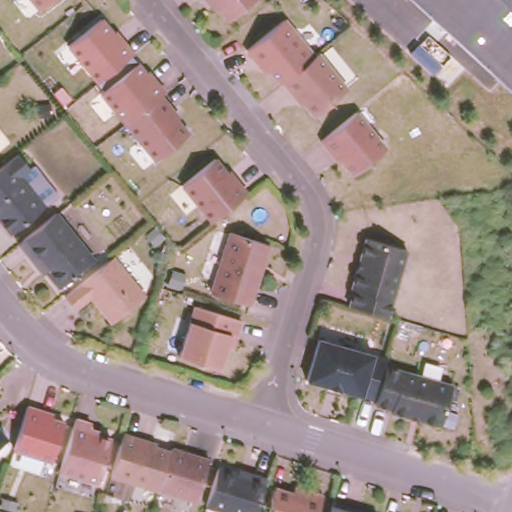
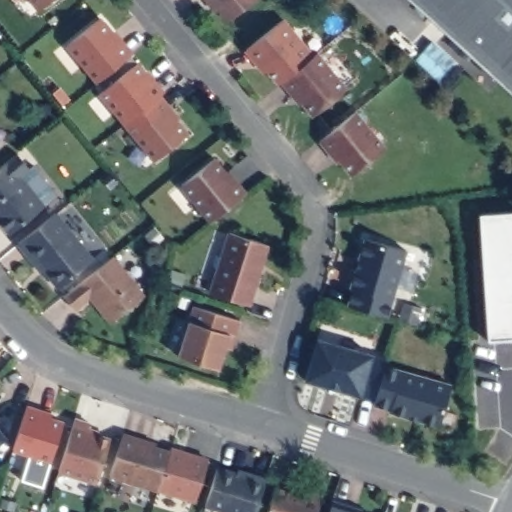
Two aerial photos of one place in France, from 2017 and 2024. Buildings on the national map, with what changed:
unchanged [(25,0),(50,0),(36,13),(25,0)]
unchanged [(204,0),(254,0),(223,23),(204,0)]
unchanged [(409,0),(512,0),(512,94),(409,0)]
unchanged [(285,20),(313,55),(319,51),(347,86),(313,116),(304,104),(299,106),(270,71),(262,76),(245,51),(285,20)]
unchanged [(102,21),(131,55),(92,81),(65,48),(102,21)]
unchanged [(139,67),(162,94),(155,98),(186,134),(150,161),(97,95),(139,67)]
unchanged [(357,113),(385,148),(346,178),(334,162),(332,164),(315,143),(357,113)]
unchanged [(0,168),(17,156),(30,171),(19,178),(44,208),(6,235),(0,227),(0,168)]
unchanged [(214,161),(242,197),(205,222),(176,188),(214,161)]
new [(512,210),(512,339),(487,341),(479,214),(512,210)]
unchanged [(40,273),(37,276),(15,249),(53,220),(90,262),(67,278),(69,280),(54,288),(40,273)]
unchanged [(269,247),(250,306),(208,296),(226,235),(269,247)]
unchanged [(365,239),(406,252),(388,319),(345,308),(365,239)]
unchanged [(87,299),(72,310),(64,299),(80,288),(77,284),(111,260),(142,296),(108,323),(87,299)]
unchanged [(232,336),(220,371),(179,357),(185,322),(232,336)]
unchanged [(385,366),(376,396),(360,391),(360,398),(305,384),(316,341),(386,360),(385,366)]
unchanged [(450,384),(439,426),(375,407),(376,396),(385,366),(450,384)]
unchanged [(30,407),(50,413),(49,422),(63,426),(49,465),(10,452),(30,407)]
unchanged [(75,421),(90,426),(88,433),(110,439),(94,483),(57,474),(75,421)]
unchanged [(0,441),(0,430),(5,437),(0,441)]
unchanged [(122,436),(152,445),(151,447),(175,454),(177,451),(207,462),(194,504),(108,478),(122,436)]
unchanged [(219,468),(263,481),(252,512),(213,512),(206,510),(219,468)]
unchanged [(274,490),(297,497),(299,493),(321,500),(317,512),(265,512),(274,490)]
unchanged [(332,505),(359,511),(358,512),(329,512),(332,505)]

